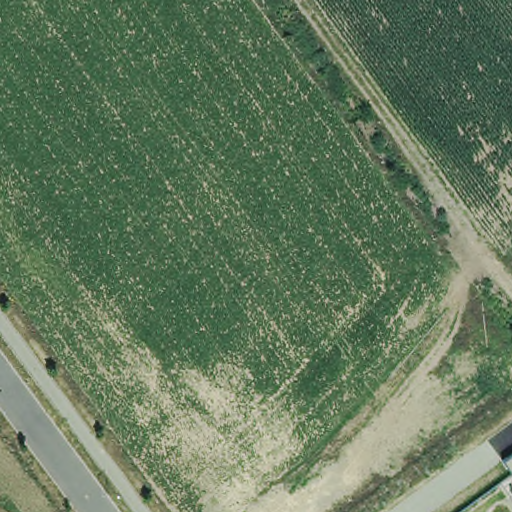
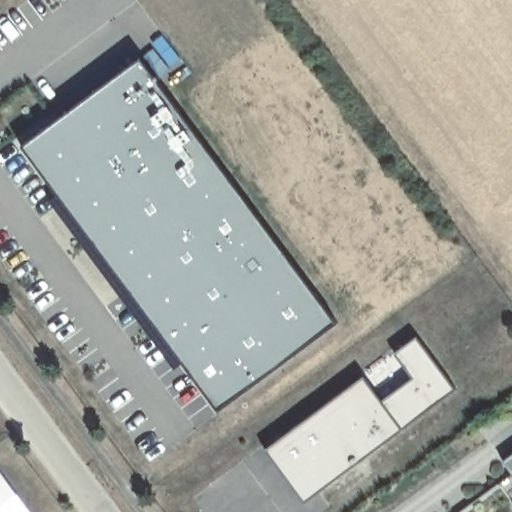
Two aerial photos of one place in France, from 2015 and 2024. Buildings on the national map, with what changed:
new [(330,324),(215,412),(19,148),(136,59),(330,324)]
new [(302,501),(267,452),(366,379),(383,401),(415,377),(397,353),(418,338),(455,387),(302,501)]
unchanged [(512,474),(503,462),(512,455),(512,474)]
new [(0,512),(0,476),(26,512),(0,512)]

